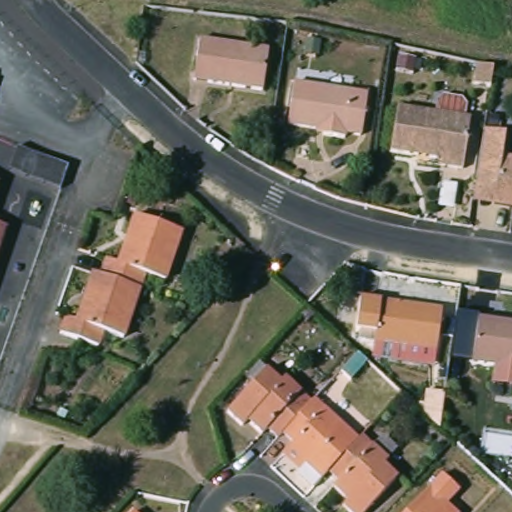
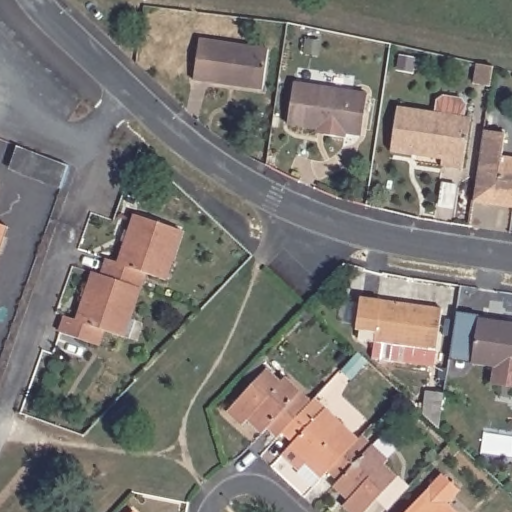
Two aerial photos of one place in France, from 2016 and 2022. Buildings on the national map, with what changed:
unchanged [(258,88),(189,77),(194,36),(263,45),(258,88)]
unchanged [(492,70),(489,91),(474,89),(477,67),(492,70)]
unchanged [(315,130),(286,124),(294,84),(367,98),(359,139),(343,135),(343,140),(322,136),(314,135),(315,130)]
unchanged [(461,169),(440,166),(441,157),(418,154),(417,156),(389,152),(397,106),(468,118),(461,169)]
unchanged [(475,177),(482,129),(512,133),(512,207),(472,202),(474,189),(475,177)]
unchanged [(68,169),(61,188),(12,172),(18,153),(68,169)]
unchanged [(99,330),(93,346),(57,333),(63,318),(73,321),(90,273),(97,275),(98,275),(103,259),(115,264),(131,215),(177,230),(160,279),(141,272),(135,289),(119,337),(99,330)]
unchanged [(0,237),(0,227),(3,228),(0,237)]
unchanged [(360,334),(356,334),(362,298),(443,309),(436,351),(375,343),(359,340),(360,334)]
unchanged [(487,385),(489,368),(468,364),(474,320),(512,325),(512,389),(487,385)]
unchanged [(244,421),(238,427),(224,413),(250,386),(240,377),(255,362),(264,370),(277,383),(282,378),(308,403),(279,434),(274,439),(264,429),(258,434),(244,421)]
unchanged [(437,426),(421,411),(424,392),(442,394),(437,426)]
unchanged [(285,449),(290,444),(279,434),(308,403),(311,399),(354,441),(325,473),(318,480),(285,449)]
unchanged [(385,460),(380,465),(394,478),(363,512),(345,512),(340,508),(344,502),(330,489),(335,483),(325,473),(354,441),(359,436),(385,460)]
unchanged [(439,476),(458,493),(446,507),(452,512),(405,512),(439,476)]

